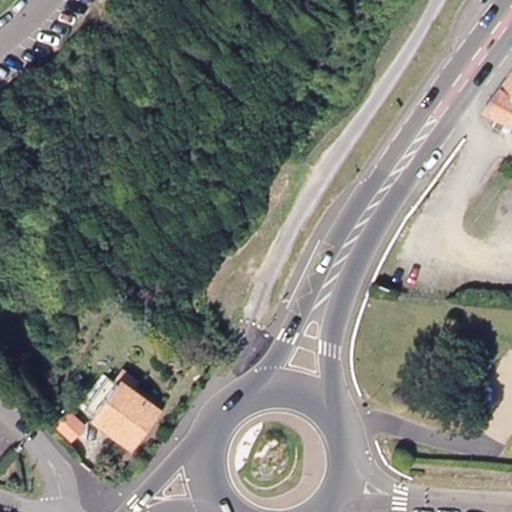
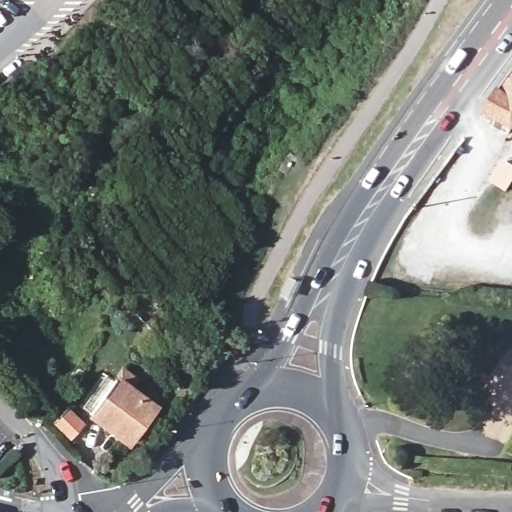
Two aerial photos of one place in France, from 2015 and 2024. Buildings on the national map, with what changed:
unchanged [(483,103),(512,65),(512,122),(511,122),(483,103)]
unchanged [(149,399),(157,405),(129,448),(89,421),(81,416),(103,382),(111,387),(143,408),(149,399)]
unchanged [(65,417),(84,430),(74,446),(55,433),(65,417)]

